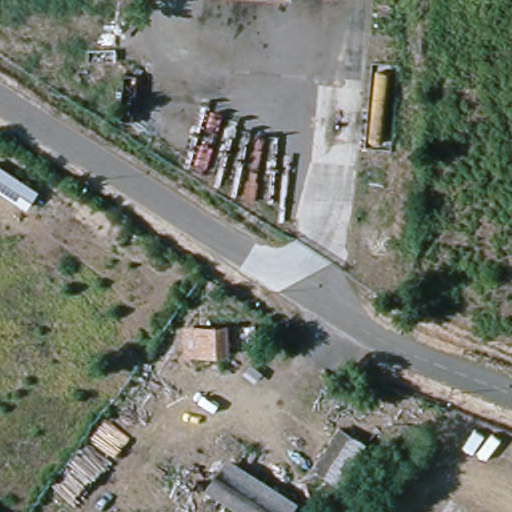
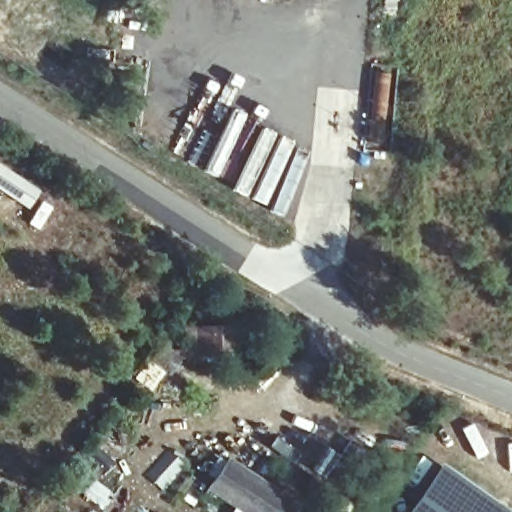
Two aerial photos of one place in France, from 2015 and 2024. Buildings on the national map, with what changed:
unchanged [(26,183),(34,169),(77,195),(69,209),(26,183)]
unchanged [(192,330),(222,330),(222,355),(192,355),(192,330)]
unchanged [(311,472),(339,431),(368,450),(340,491),(311,472)]
new [(512,512),(405,512),(440,462),(512,512)]
unchanged [(239,463),(294,503),(287,512),(251,512),(220,489),(239,463)]

